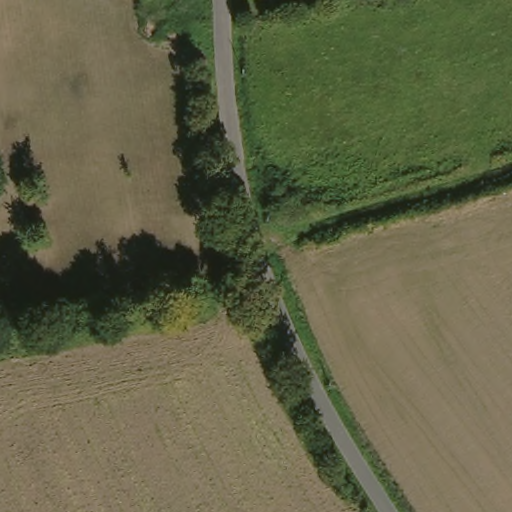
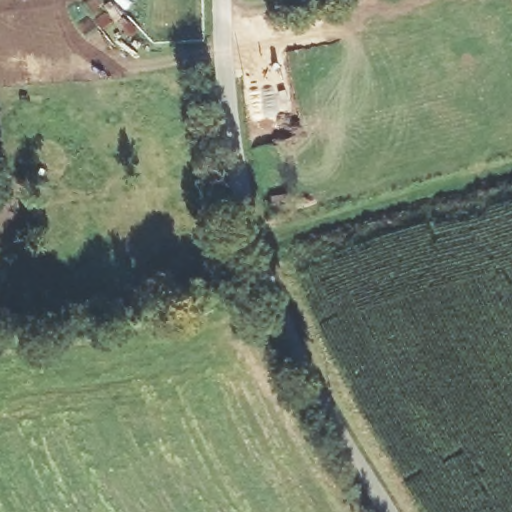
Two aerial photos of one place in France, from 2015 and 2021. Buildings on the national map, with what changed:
unchanged [(186,121),(183,93),(198,91),(200,120),(186,121)]

